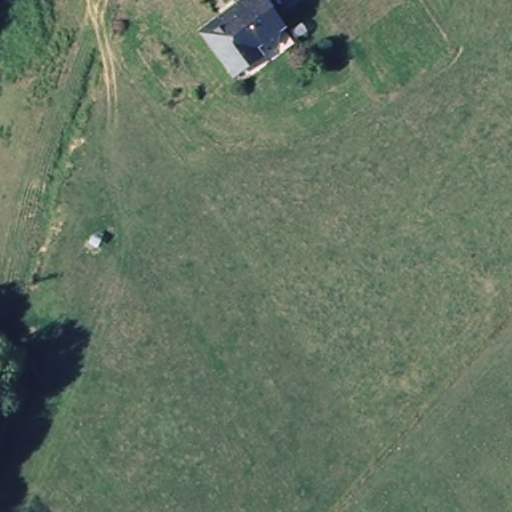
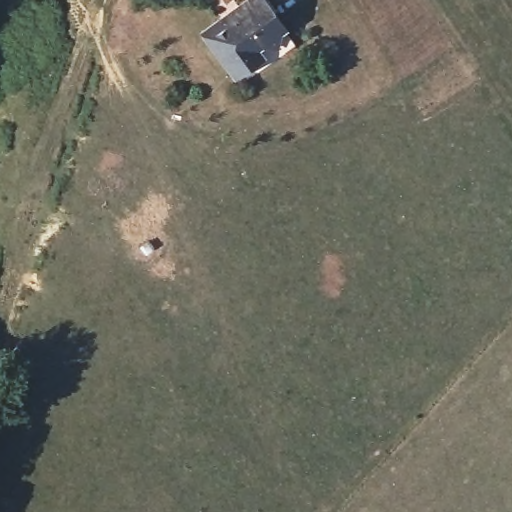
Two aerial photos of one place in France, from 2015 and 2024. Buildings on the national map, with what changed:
unchanged [(255,0),(288,41),(238,82),(198,32),(236,0),(255,0)]

